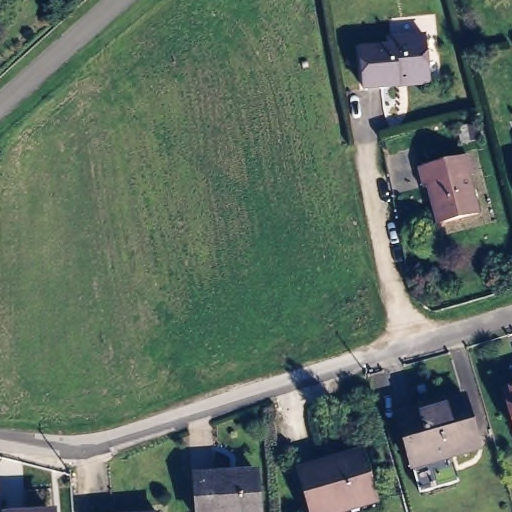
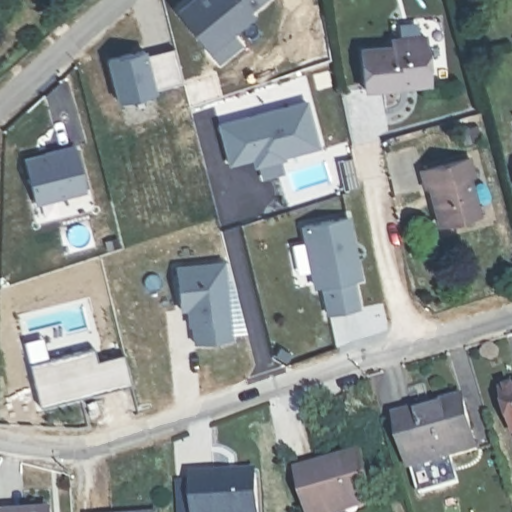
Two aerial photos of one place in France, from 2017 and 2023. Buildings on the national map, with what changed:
new [(216,64),(207,50),(175,10),(186,0),(263,0),(250,11),(254,15),(232,32),(242,44),(216,64)]
unchanged [(355,50),(383,45),(383,35),(418,30),(425,82),(359,91),(355,50)]
new [(142,48),(145,58),(171,52),(180,83),(116,99),(106,57),(142,48)]
new [(263,163),(262,158),(262,154),(235,161),(226,124),(316,101),(327,144),(291,153),(291,151),(292,156),(263,163)]
new [(34,204),(22,158),(73,144),(86,191),(34,204)]
unchanged [(471,155),(476,176),(472,177),(480,211),(435,220),(428,186),(422,186),(418,166),(471,155)]
new [(353,279),(360,308),(326,315),(320,286),(312,288),(300,226),(349,216),(362,278),(353,279)]
new [(191,342),(190,326),(187,326),(185,310),(179,310),(175,266),(224,260),(231,338),(191,342)]
new [(40,407),(29,363),(94,347),(97,360),(124,353),(131,383),(40,407)]
unchanged [(512,417),(502,382),(512,379),(512,417)]
unchanged [(418,421),(415,411),(461,399),(476,448),(412,469),(398,425),(418,421)]
unchanged [(370,445),(383,502),(349,512),(306,512),(296,464),(370,445)]
unchanged [(259,512),(199,512),(195,475),(254,470),(259,512)]
new [(1,509),(0,509),(0,496),(1,509)]
unchanged [(51,505),(52,512),(8,512),(7,508),(51,505)]

